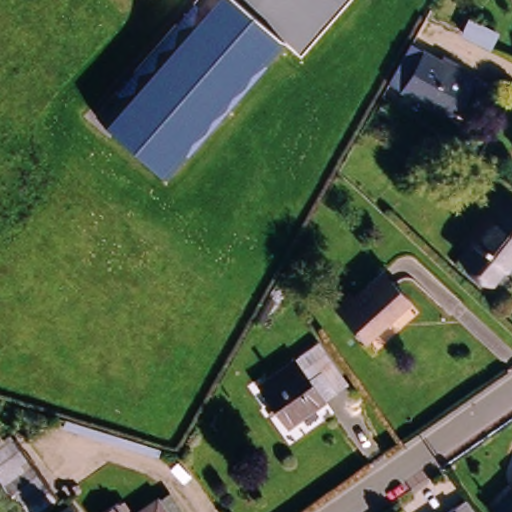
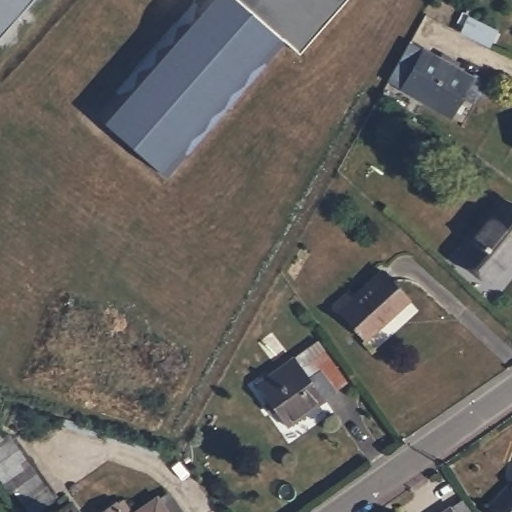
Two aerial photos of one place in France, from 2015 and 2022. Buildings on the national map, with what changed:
new [(0,34),(0,0),(30,0),(0,34)]
unchanged [(300,52),(285,40),(170,179),(95,114),(198,0),(346,0),(300,52)]
unchanged [(494,30),(487,43),(462,30),(468,17),(494,30)]
unchanged [(459,102),(448,121),(387,86),(408,47),(437,62),(440,58),(448,62),(449,63),(457,67),(455,72),(470,81),(472,77),(486,85),(472,109),(459,102)]
unchanged [(512,208),(512,250),(490,277),(460,253),(503,201),(512,208)]
unchanged [(407,300),(365,337),(338,308),(332,302),(347,289),(353,295),(380,271),(407,300)]
unchanged [(279,425),(250,383),(289,356),(312,340),(319,350),(341,382),(279,425)]
unchanged [(0,445),(12,440),(54,497),(34,512),(27,512),(12,492),(9,495),(0,482),(0,445)]
unchanged [(512,483),(512,512),(497,512),(488,504),(510,481),(512,483)]
unchanged [(174,512),(132,512),(160,492),(174,512)]
unchanged [(130,512),(99,512),(120,497),(130,512)]
unchanged [(457,500),(466,512),(440,512),(447,507),(457,500)]

